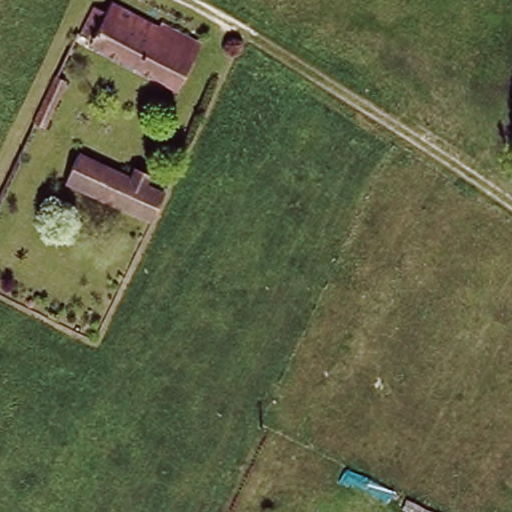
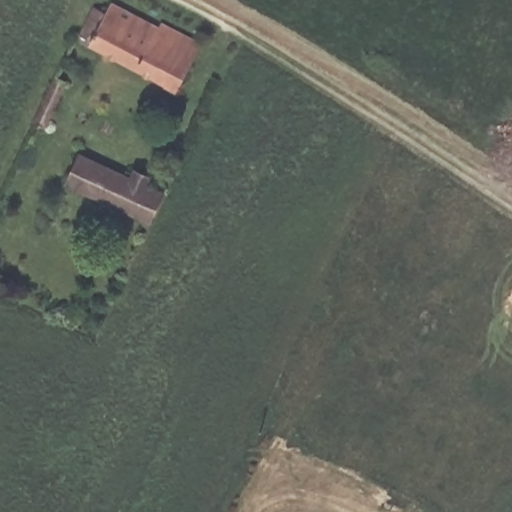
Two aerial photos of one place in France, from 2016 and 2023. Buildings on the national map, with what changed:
unchanged [(167,35),(170,29),(200,45),(175,90),(97,47),(99,44),(87,37),(102,10),(114,15),(117,9),(167,35)]
unchanged [(30,121),(53,75),(67,81),(45,127),(30,122),(30,121)]
unchanged [(132,183),(137,172),(150,179),(145,189),(165,198),(153,225),(69,187),(81,160),(132,183)]

